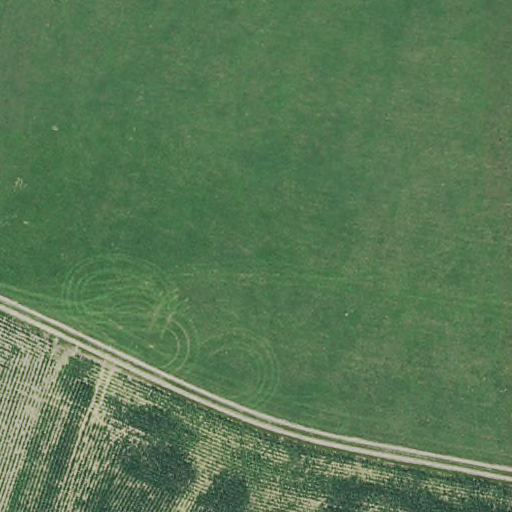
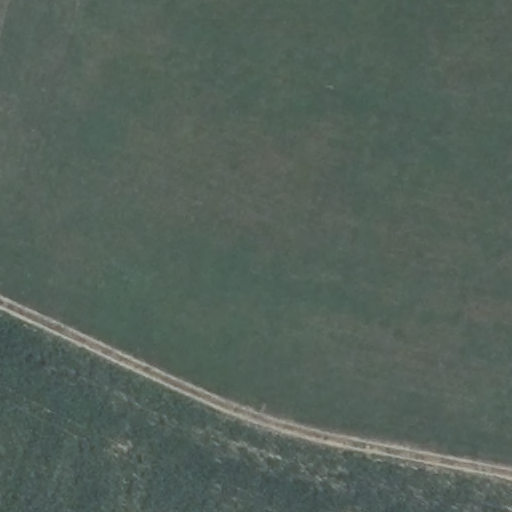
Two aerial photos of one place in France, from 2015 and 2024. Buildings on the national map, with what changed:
[]

